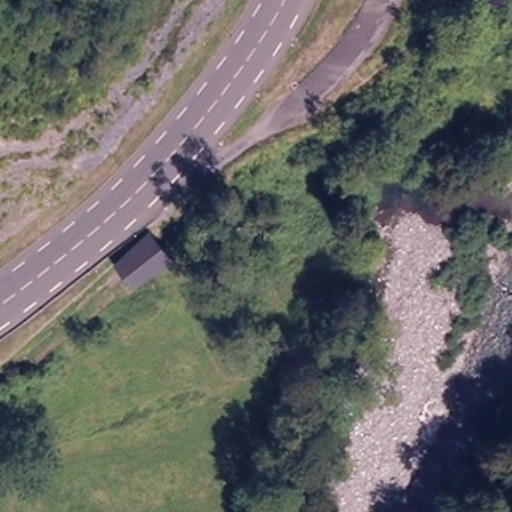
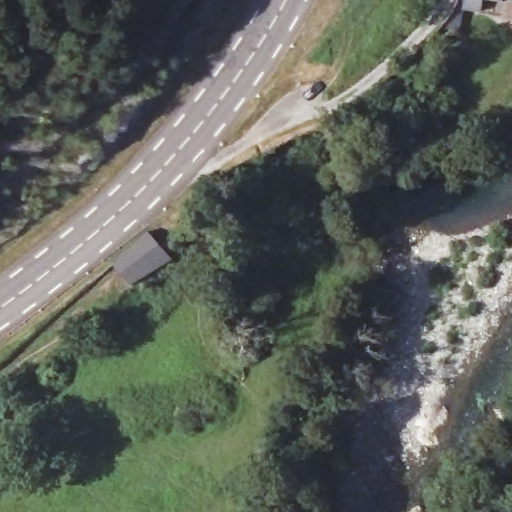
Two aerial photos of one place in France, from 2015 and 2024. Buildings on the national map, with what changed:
unchanged [(176,228),(195,260),(155,283),(138,257),(176,228)]

